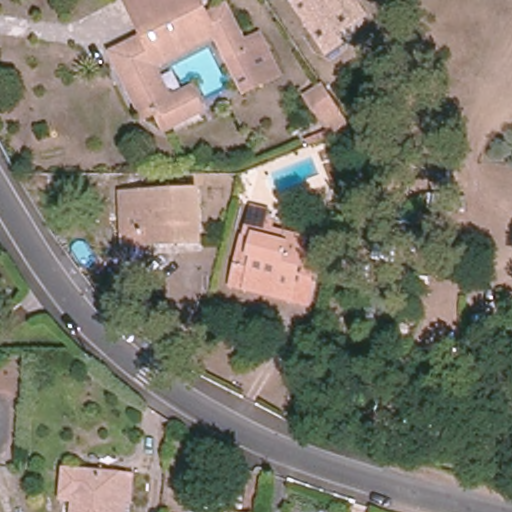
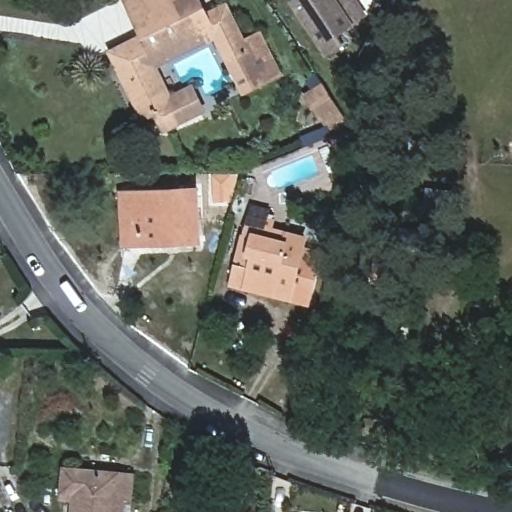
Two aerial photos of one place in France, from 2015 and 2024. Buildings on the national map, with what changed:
unchanged [(258,42),(277,79),(245,95),(216,40),(154,70),(170,105),(191,94),(202,116),(166,134),(157,115),(145,122),(113,58),(145,42),(125,3),(132,0),(195,0),(206,22),(225,12),(244,49),(258,42)]
unchanged [(298,0),(334,0),(351,26),(337,36),(342,44),(327,54),(293,4),(298,0)]
unchanged [(337,105),(350,124),(333,132),(324,117),(320,120),(305,97),(323,85),(337,105)]
unchanged [(122,212),(121,192),(197,189),(200,243),(140,246),(124,247),(122,212)]
unchanged [(468,217),(432,212),(432,197),(470,200),(468,217)]
unchanged [(231,288),(252,210),(270,214),(265,232),(286,237),(306,242),(303,256),(321,260),(310,307),(276,300),(243,292),(231,288)]
unchanged [(390,246),(392,230),(435,236),(435,254),(390,246)]
unchanged [(15,382),(1,381),(3,367),(17,368),(15,382)]
unchanged [(65,502),(65,494),(67,477),(130,482),(127,512),(76,512),(76,502),(65,502)]

